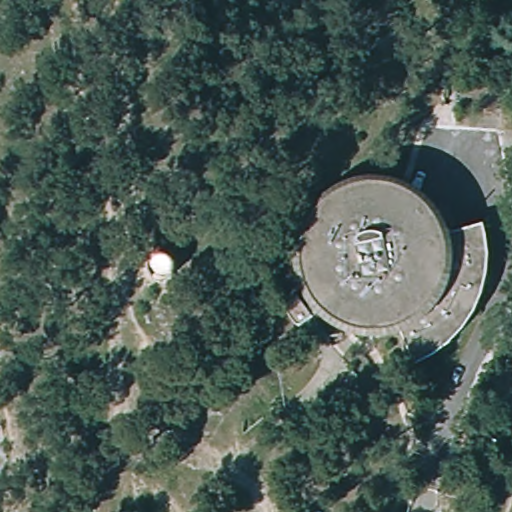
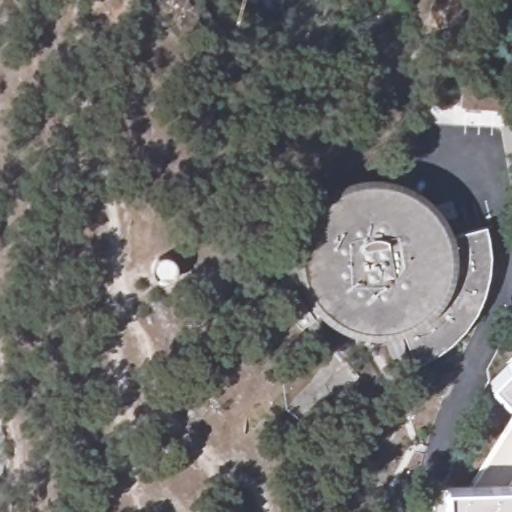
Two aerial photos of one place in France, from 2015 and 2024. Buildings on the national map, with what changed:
unchanged [(465,83),(512,86),(512,112),(463,108),(465,83)]
unchanged [(318,306),(312,300),(308,292),(304,284),(301,276),(299,268),(298,259),(298,250),(299,241),(301,233),(304,225),(308,217),(313,209),(318,203),(325,197),(332,192),(339,187),(347,184),(356,181),(364,180),(373,179),(382,180),(391,181),(399,184),(407,187),(415,192),(422,197),(428,203),(434,210),(438,217),(442,225),(445,233),(473,225),(475,235),(476,246),(477,256),(476,267),(474,277),(472,287),(468,297),(463,306),(457,315),(451,323),(444,331),(436,337),(427,343),(418,348),(408,352),(399,326),(390,328),(382,330),(373,330),(364,330),(355,328),(347,325),(339,322),(331,318),(324,312),(318,306)]
unchanged [(182,266),(179,271),(175,273),(170,274),(166,273),(161,271),(159,266),(158,262),(159,257),(161,253),(166,250),(170,249),(175,250),(179,253),(182,257),(183,262),(182,266)]
unchanged [(302,327),(288,309),(301,297),(316,317),(302,327)]
new [(505,408),(485,388),(483,375),(512,349),(512,408),(510,405),(505,408)]
new [(447,487),(466,486),(512,414),(512,512),(447,512),(447,487)]

